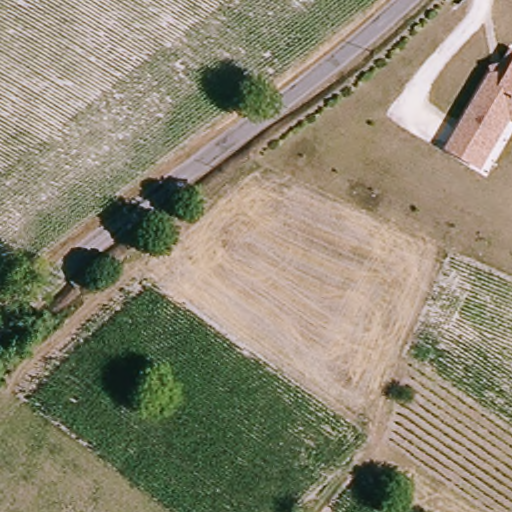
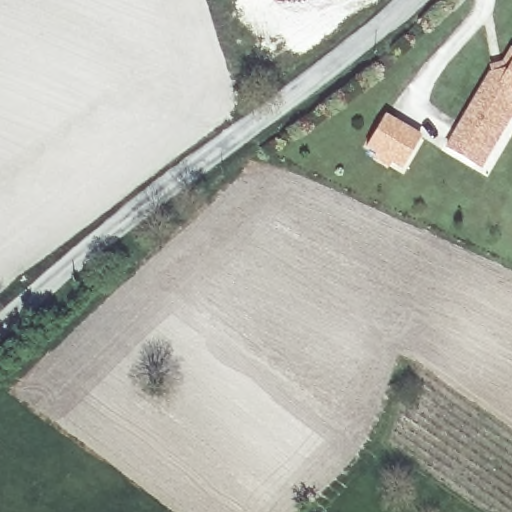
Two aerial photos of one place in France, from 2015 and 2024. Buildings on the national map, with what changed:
unchanged [(446,146),(491,70),(489,64),(502,60),(511,45),(512,46),(512,118),(511,117),(482,167),(446,146)]
new [(383,117),(418,139),(400,167),(365,145),(383,117)]

